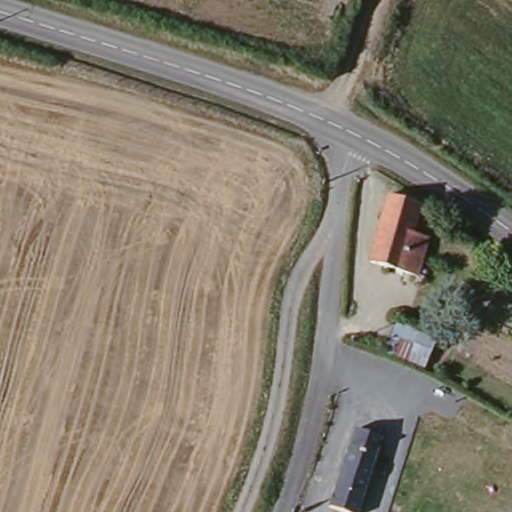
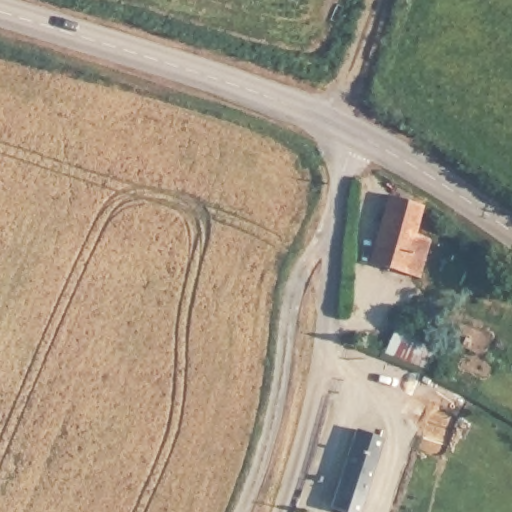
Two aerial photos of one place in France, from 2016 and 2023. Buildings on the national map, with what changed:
unchanged [(420,211),(412,238),(428,243),(418,280),(370,267),(388,201),(420,211)]
unchanged [(324,512),(352,436),(353,434),(380,444),(378,448),(354,512),(324,512)]

